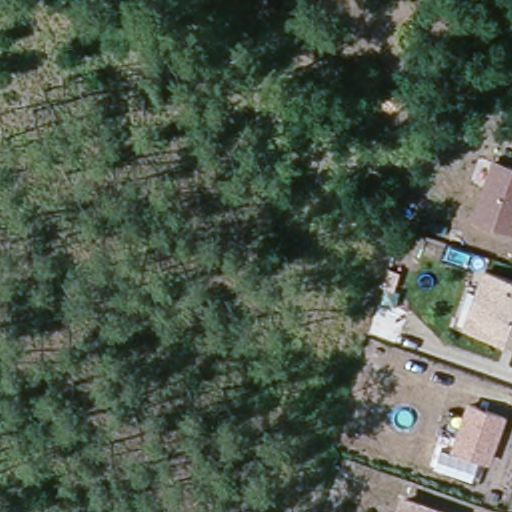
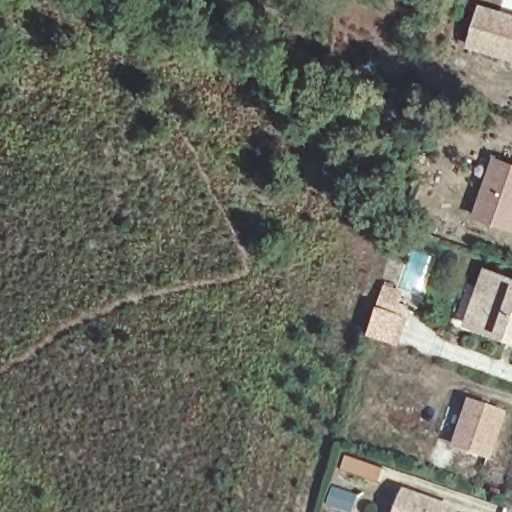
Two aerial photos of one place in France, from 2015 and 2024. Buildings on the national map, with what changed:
new [(512,61),(467,48),(480,3),(512,13),(512,61)]
unchanged [(512,228),(472,215),(490,155),(512,161),(512,228)]
unchanged [(483,267),(512,277),(512,341),(463,327),(483,267)]
new [(367,334),(385,284),(405,291),(401,302),(411,305),(398,345),(367,334)]
unchanged [(486,456),(453,441),(473,399),(505,414),(486,456)]
unchanged [(459,512),(395,512),(402,488),(460,508),(459,512)]

